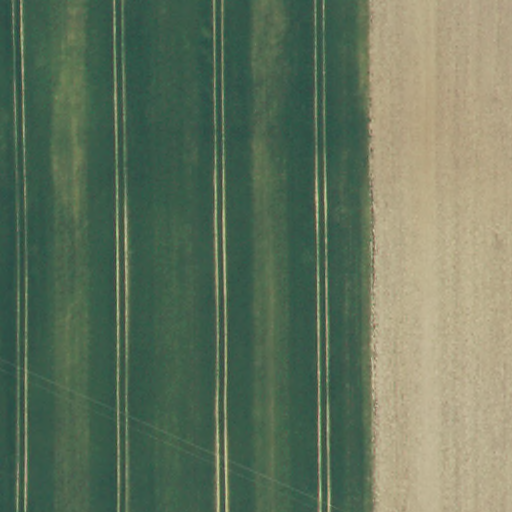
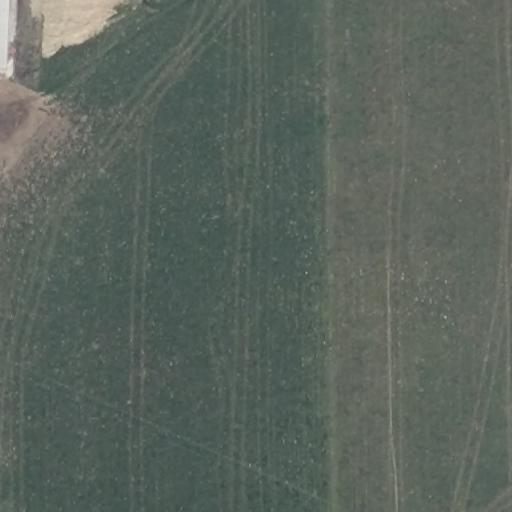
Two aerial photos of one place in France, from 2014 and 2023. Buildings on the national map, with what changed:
new [(5,69),(0,69),(0,0),(8,0),(5,69)]

